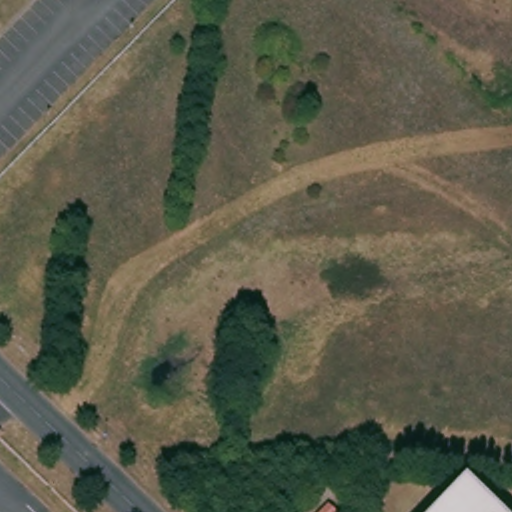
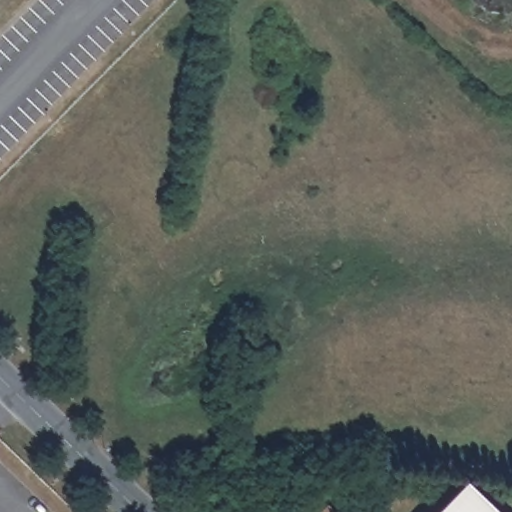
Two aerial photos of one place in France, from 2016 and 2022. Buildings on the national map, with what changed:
unchanged [(463,483),(492,512),(435,512),(463,483)]
unchanged [(336,512),(318,512),(327,503),(336,512)]

